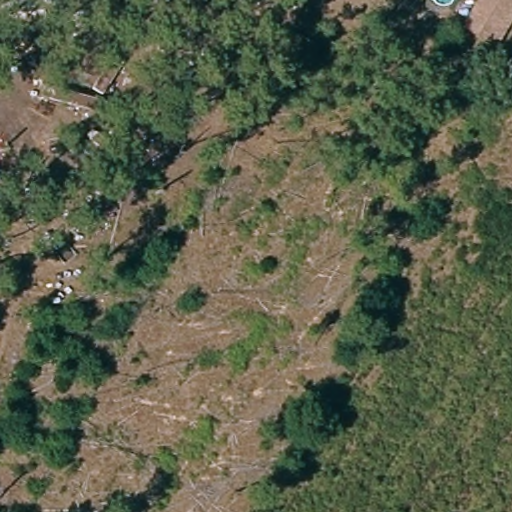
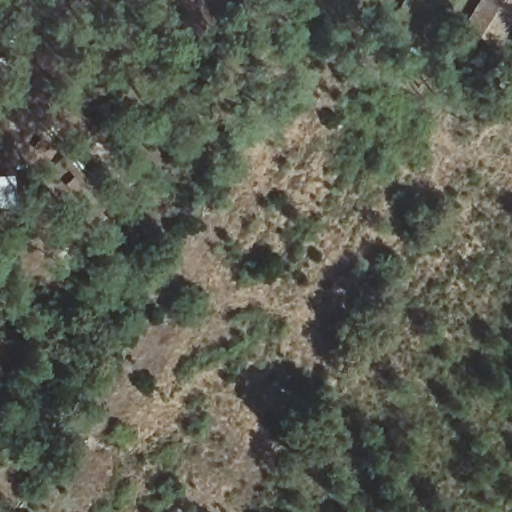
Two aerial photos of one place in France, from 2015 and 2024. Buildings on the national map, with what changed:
unchanged [(512,0),(512,24),(496,48),(463,27),(480,0),(512,0)]

